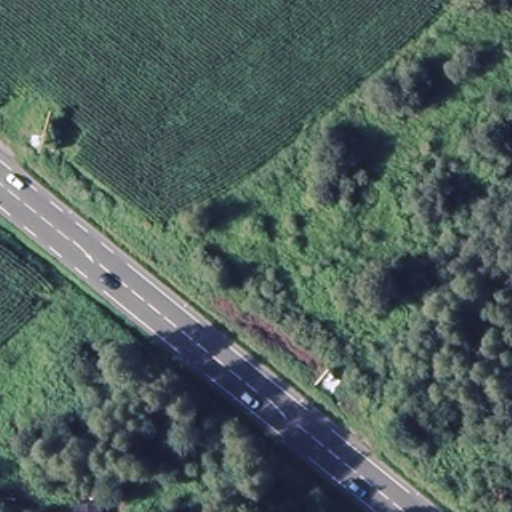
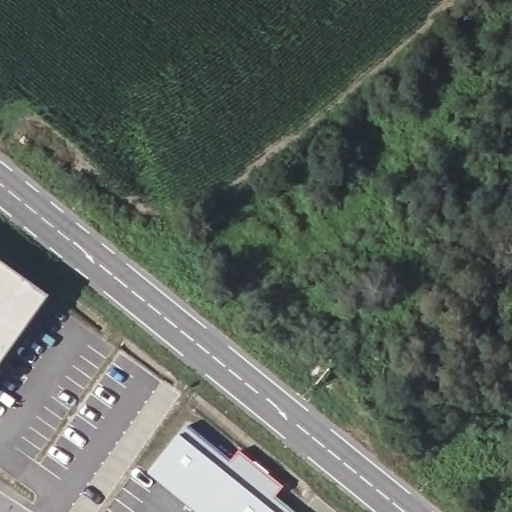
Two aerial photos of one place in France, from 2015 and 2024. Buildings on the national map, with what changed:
new [(0,367),(0,261),(50,297),(0,367)]
new [(149,472),(188,425),(232,460),(239,450),(283,486),(275,495),(296,512),(197,512),(194,509),(149,472)]

